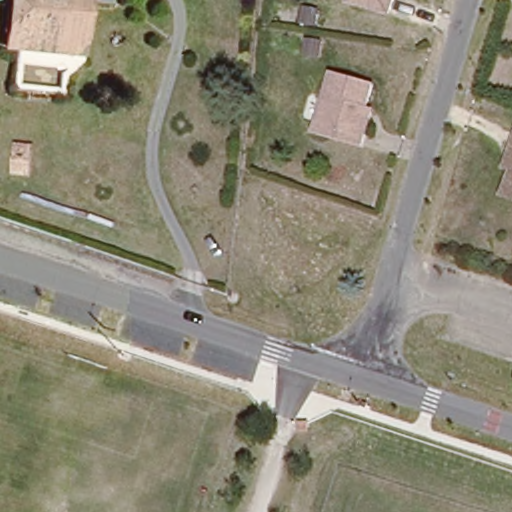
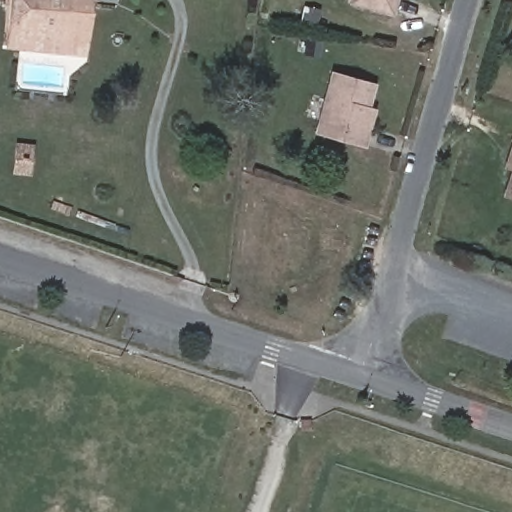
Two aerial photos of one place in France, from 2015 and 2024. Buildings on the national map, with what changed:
unchanged [(87,6),(80,59),(11,49),(4,48),(10,7),(11,0),(96,0),(96,6),(87,6)]
unchanged [(350,0),(394,0),(391,12),(350,0)]
unchanged [(367,144),(318,130),(335,71),(376,83),(368,107),(377,109),(371,129),(367,144)]
unchanged [(504,164),(511,143),(512,138),(512,166),(504,164)]
unchanged [(0,172),(1,164),(2,154),(9,155),(14,156),(19,157),(17,166),(15,183),(9,182),(0,180),(0,172)]
unchanged [(506,193),(512,173),(512,196),(506,193)]

